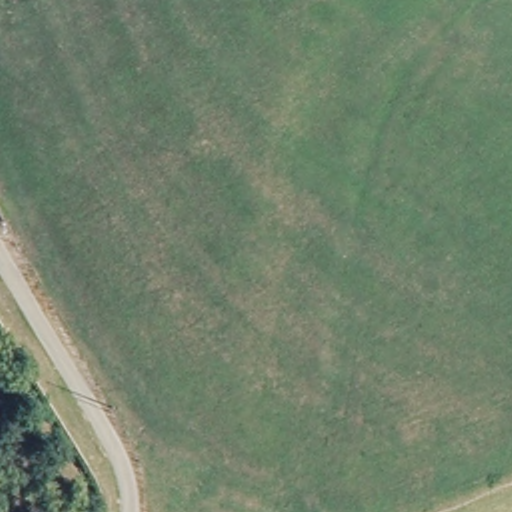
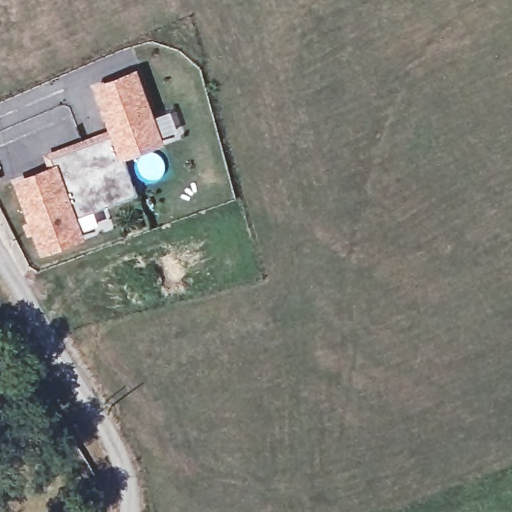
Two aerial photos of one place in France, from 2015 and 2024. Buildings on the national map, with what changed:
new [(124,160),(136,194),(77,215),(86,239),(42,255),(13,180),(49,165),(44,155),(110,130),(92,85),(139,69),(156,116),(171,111),(179,130),(162,136),(165,145),(124,160)]

